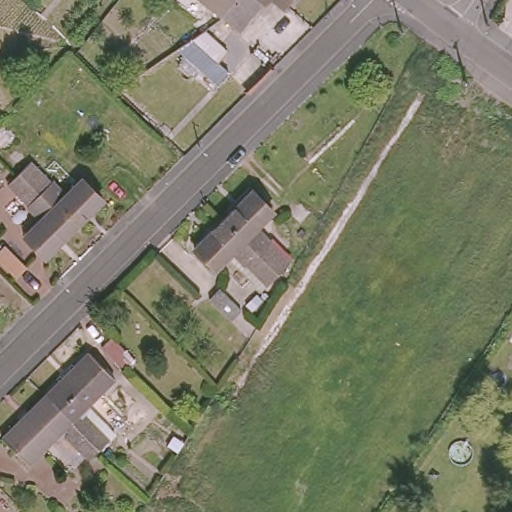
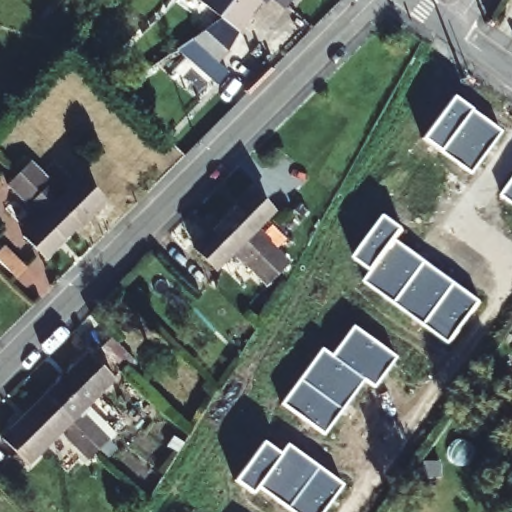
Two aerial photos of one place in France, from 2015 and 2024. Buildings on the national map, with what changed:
unchanged [(207,8),(213,0),(232,0),(218,17),(207,8)]
unchanged [(218,17),(232,0),(262,0),(237,32),(218,17)]
unchanged [(275,0),(284,0),(280,4),(275,0)]
unchanged [(201,29),(225,49),(215,61),(188,39),(201,29)]
new [(439,152),(421,140),(453,97),(471,111),(500,132),(470,174),(439,152)]
unchanged [(16,174),(27,162),(48,182),(51,184),(63,196),(80,180),(100,199),(71,229),(16,174)]
unchanged [(285,190),(275,199),(259,182),(270,172),(285,190)]
unchanged [(42,257),(22,237),(40,220),(26,207),(26,206),(5,184),(16,174),(71,229),(42,257)]
new [(501,197),(512,183),(512,204),(501,197)]
unchanged [(217,221),(246,192),(265,211),(249,227),(283,262),(271,273),(217,221)]
new [(365,283),(372,272),(355,261),(385,219),(402,231),(395,242),(481,303),(450,345),(365,283)]
unchanged [(217,221),(271,273),(260,285),(240,264),(237,263),(225,251),(208,268),(190,249),(217,221)]
unchanged [(240,308),(228,319),(207,298),(218,287),(240,308)]
new [(281,403),(321,349),(331,357),(353,327),(395,357),(373,386),(363,378),(323,433),(281,403)]
unchanged [(128,354),(118,364),(102,347),(112,337),(128,354)]
unchanged [(83,353),(108,379),(71,416),(75,420),(80,416),(102,439),(92,449),(40,397),(83,353)]
unchanged [(58,436),(62,432),(58,428),(22,465),(0,442),(0,437),(40,397),(92,449),(82,460),(58,436)]
new [(258,487),(253,493),(235,480),(262,442),(280,455),(287,446),(341,486),(322,512),(292,512),(258,487)]

